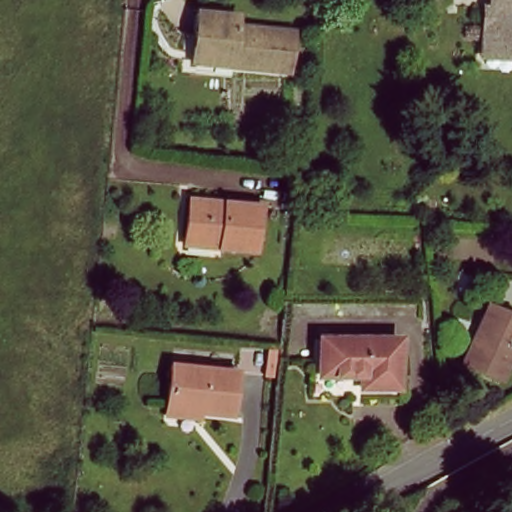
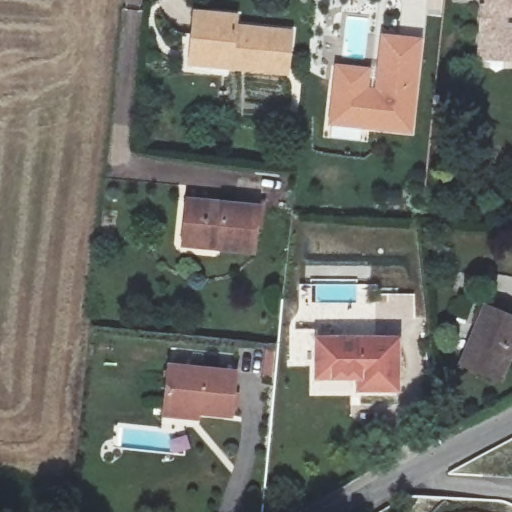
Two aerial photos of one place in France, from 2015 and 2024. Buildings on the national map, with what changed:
unchanged [(480,55),(484,0),(512,0),(512,58),(480,55)]
unchanged [(191,51),(194,12),(235,16),(234,25),(292,31),(288,71),(230,65),(190,61),(191,51)]
new [(339,63),(381,68),(385,33),(422,37),(412,129),(332,120),(337,83),(339,63)]
unchanged [(255,255),(218,252),(219,245),(184,242),(187,204),(260,211),(255,255)]
unchanged [(512,314),(512,357),(472,343),(485,304),(512,314)]
unchanged [(397,344),(395,391),(355,389),(356,377),(315,374),(317,339),(397,344)]
unchanged [(264,377),(268,343),(282,344),(278,379),(264,377)]
unchanged [(504,381),(462,368),(472,343),(512,357),(504,381)]
unchanged [(164,416),(165,406),(169,366),(235,372),(231,417),(195,414),(195,420),(164,416)]

